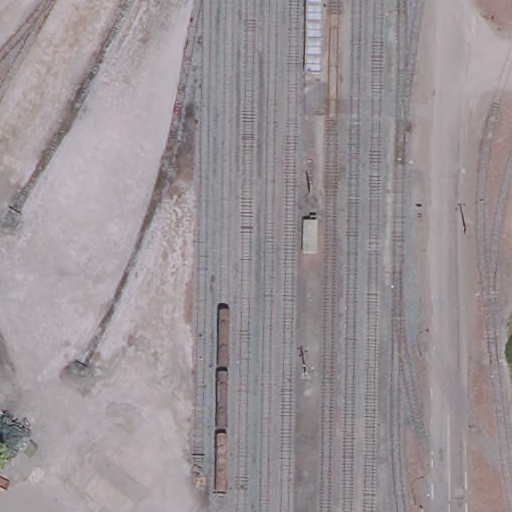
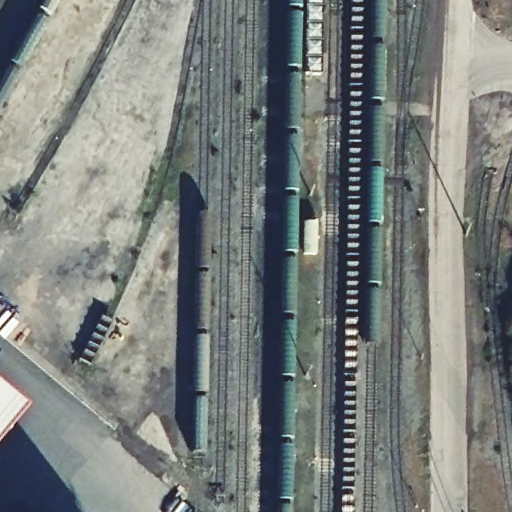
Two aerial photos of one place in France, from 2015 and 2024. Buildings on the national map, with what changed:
new [(27,409),(0,442),(0,386),(27,409)]

